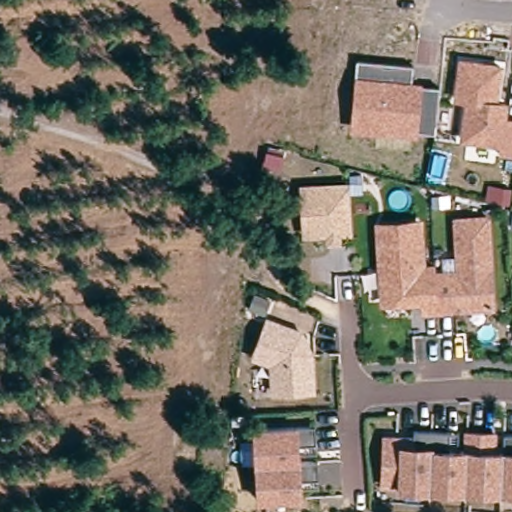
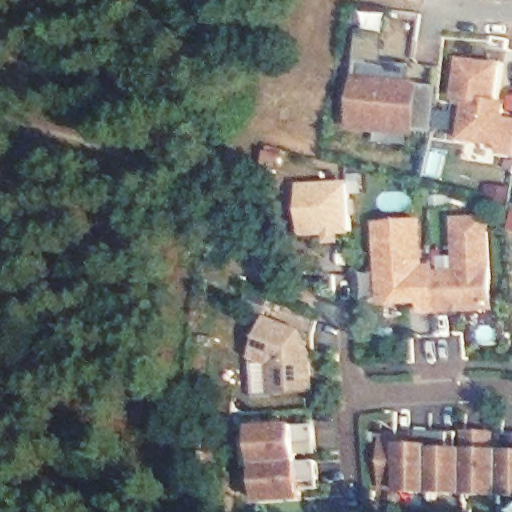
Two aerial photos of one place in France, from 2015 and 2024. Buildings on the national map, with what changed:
unchanged [(361,79),(358,78),(360,58),(414,63),(412,82),(418,83),(438,85),(441,85),(440,98),(436,131),(432,130),(357,124),(361,79)]
unchanged [(503,160),(504,152),(464,146),(469,107),(457,106),(463,69),(501,74),(496,110),(506,111),(504,127),(512,128),(512,161),(503,160)]
unchanged [(343,181),(353,181),(354,193),(343,194),(343,181)]
unchanged [(325,236),(324,229),(304,230),(302,190),(342,187),(343,210),(344,227),(332,228),(332,235),(325,236)]
unchanged [(492,215),(494,200),(507,202),(506,216),(492,215)]
unchanged [(452,210),(452,221),(436,222),(436,211),(452,210)]
unchanged [(460,276),(458,224),(489,222),(495,311),(439,314),(437,277),(460,276)]
unchanged [(391,305),(384,301),(384,289),(382,269),(380,227),(418,225),(421,271),(437,270),(437,277),(439,314),(423,315),(422,303),(403,305),(391,305)]
unchanged [(307,336),(308,356),(316,355),(318,394),(280,396),(278,366),(260,360),(273,324),(307,336)]
unchanged [(259,482),(258,463),(257,446),(256,427),(317,424),(318,443),(299,444),(300,461),(319,460),(320,478),(301,480),(302,498),(265,500),(260,500),(259,482)]
unchanged [(503,493),(485,493),(466,492),(449,492),(401,490),(401,486),(384,486),(384,480),(385,445),(386,436),(392,436),(415,437),(415,430),(452,430),(451,450),(468,450),(468,431),(487,432),(486,451),(504,451),(505,432),(512,433),(512,494),(503,493)]

